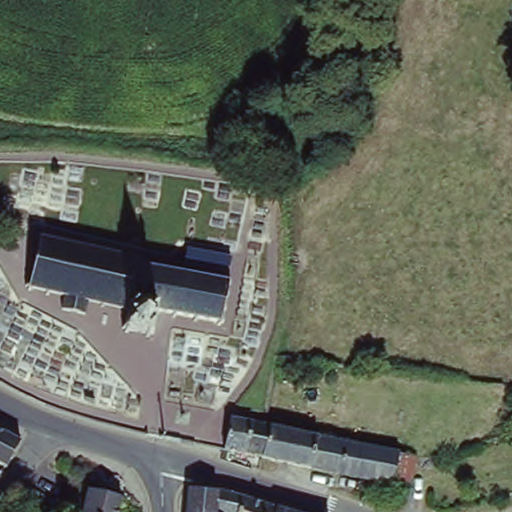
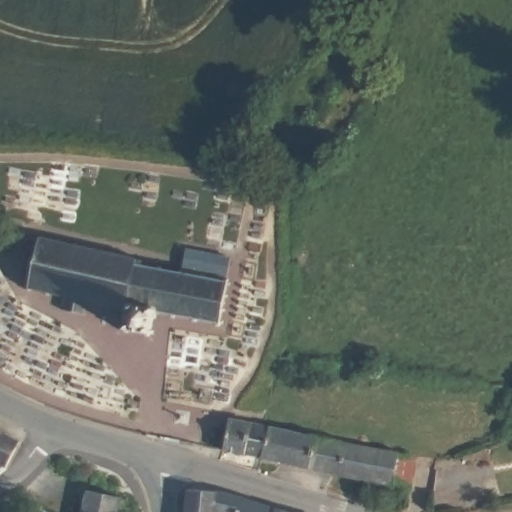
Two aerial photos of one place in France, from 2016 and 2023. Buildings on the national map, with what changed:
unchanged [(146,267),(146,272),(180,278),(185,253),(229,262),(225,287),(227,288),(221,328),(156,317),(156,321),(154,320),(149,341),(122,335),(126,317),(83,309),(81,322),(59,317),(61,302),(28,295),(37,244),(146,267)]
unchanged [(253,456),(233,452),(213,448),(219,412),(239,416),(252,419),(259,421),(394,449),(412,454),(407,486),(389,483),(253,456)]
unchanged [(0,458),(0,430),(16,439),(0,458)]
unchanged [(214,491),(275,508),(274,512),(187,512),(190,484),(214,491)]
unchanged [(119,512),(74,512),(81,489),(122,499),(120,508),(119,512)]
unchanged [(290,512),(274,512),(275,508),(290,512)]

